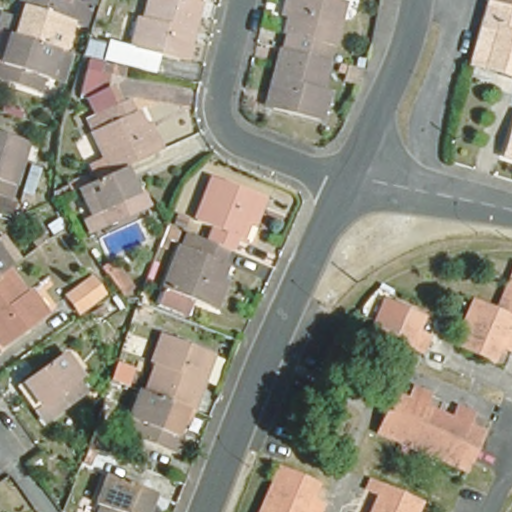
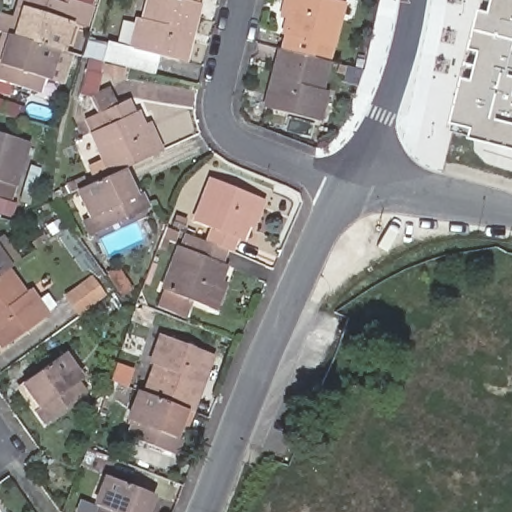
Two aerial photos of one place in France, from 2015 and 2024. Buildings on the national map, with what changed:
unchanged [(47,47),(13,37),(5,34),(14,6),(8,5),(10,0),(89,0),(83,20),(82,22),(68,18),(69,16),(55,12),(53,18),(61,21),(53,48),(51,48),(47,47)]
unchanged [(114,75),(98,71),(101,60),(81,55),(85,39),(94,41),(95,38),(131,47),(137,18),(145,20),(150,0),(199,0),(191,32),(184,61),(176,59),(159,55),(155,72),(154,72),(147,71),(124,65),(122,64),(119,76),(114,75)]
unchanged [(284,35),(288,19),(282,17),(287,0),(346,0),(332,59),(327,57),(322,56),(314,54),(300,51),(284,47),(287,35),(284,35)]
new [(453,126),(487,0),(512,0),(512,141),(453,126)]
demolished [(472,64),(482,24),(488,0),(504,0),(512,2),(512,75),(472,64)]
demolished [(504,0),(512,0),(512,2),(504,0)]
unchanged [(13,37),(47,47),(51,48),(53,48),(64,51),(55,82),(38,76),(34,75),(28,93),(0,84),(0,33),(5,34),(13,37)]
unchanged [(272,76),(280,46),(284,47),(300,51),(314,54),(322,56),(327,57),(319,86),(326,88),(318,120),(272,109),(266,108),(272,76)]
unchanged [(359,71),(355,88),(352,88),(338,84),(342,67),(359,71)]
unchanged [(106,170),(104,171),(90,177),(82,160),(99,153),(82,115),(90,112),(83,96),(111,84),(118,99),(124,97),(128,107),(133,105),(141,123),(147,120),(158,147),(152,149),(119,164),(106,170)]
unchanged [(1,195),(0,195),(0,132),(22,140),(7,180),(1,195)]
demolished [(504,160),(512,133),(512,162),(504,160)]
unchanged [(81,216),(87,214),(75,184),(90,177),(104,171),(106,170),(119,164),(132,194),(141,191),(146,206),(102,225),(87,231),(81,216)]
unchanged [(36,194),(22,190),(29,169),(42,173),(36,194)]
unchanged [(223,248),(203,240),(195,237),(201,223),(192,219),(208,178),(252,195),(258,197),(247,225),(241,223),(235,237),(232,236),(227,249),(224,248),(223,248)]
unchanged [(47,202),(67,229),(48,243),(27,212),(47,202)]
unchanged [(212,307),(202,303),(160,287),(176,244),(181,232),(183,232),(192,236),(195,237),(203,240),(223,248),(224,248),(213,276),(222,279),(212,307)]
unchanged [(0,272),(0,258),(7,267),(2,270),(0,272)]
unchanged [(132,282),(120,291),(103,270),(102,271),(97,264),(103,259),(108,265),(116,260),(132,282)]
demolished [(510,315),(502,331),(512,335),(512,340),(507,351),(496,346),(489,360),(452,342),(451,342),(471,299),(492,308),(511,264),(512,265),(512,316),(510,315)]
unchanged [(105,288),(77,308),(64,290),(92,269),(105,288)]
unchanged [(20,294),(24,291),(41,314),(7,341),(0,346),(0,272),(2,270),(20,294)]
demolished [(359,347),(379,302),(418,319),(412,332),(423,338),(416,355),(404,350),(398,364),(359,347)]
unchanged [(145,390),(155,362),(151,360),(162,333),(197,347),(207,351),(195,378),(184,404),(179,402),(145,390)]
unchanged [(32,411),(39,406),(22,380),(62,352),(82,376),(78,379),(87,393),(53,417),(42,424),(32,411)]
demolished [(378,423),(390,395),(391,393),(394,394),(402,398),(407,386),(421,392),(426,394),(421,406),(437,413),(448,418),(453,406),(463,411),(472,414),(471,416),(467,426),(480,431),(466,462),(461,472),(445,465),(428,458),(396,443),(382,437),(373,434),(378,423)]
unchanged [(145,390),(179,402),(168,427),(173,429),(167,445),(129,429),(135,413),(130,411),(139,388),(145,390)]
demolished [(319,483),(312,498),(324,503),(320,512),(258,512),(279,465),(319,483)]
unchanged [(95,512),(100,501),(96,499),(106,470),(155,488),(146,512),(95,512)]
demolished [(367,512),(375,493),(362,489),(366,480),(419,501),(414,512),(367,512)]

